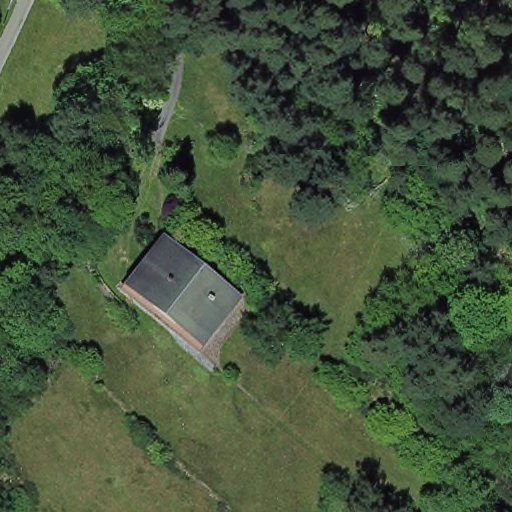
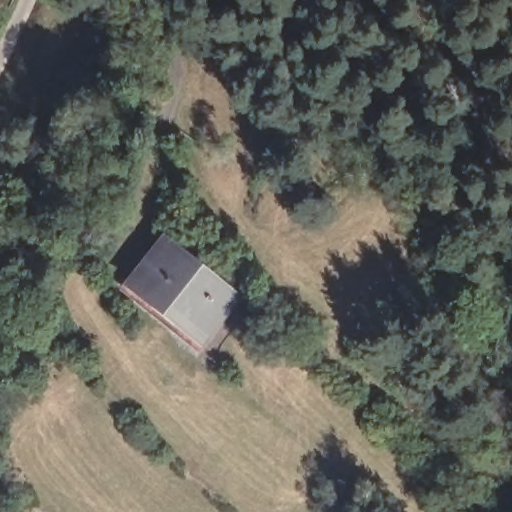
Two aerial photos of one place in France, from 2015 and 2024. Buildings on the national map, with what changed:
unchanged [(206,348),(122,280),(171,231),(247,293),(206,348)]

